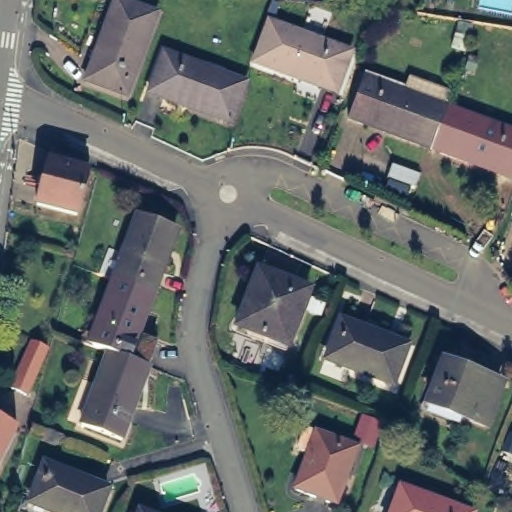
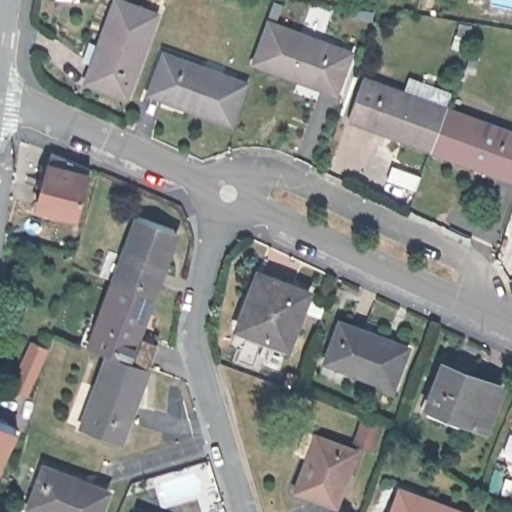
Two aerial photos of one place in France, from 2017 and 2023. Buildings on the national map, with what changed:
unchanged [(53,6),(54,0),(75,0),(74,8),(53,6)]
unchanged [(117,0),(124,0),(156,11),(139,54),(143,55),(128,96),(86,81),(92,66),(101,43),(117,0)]
unchanged [(251,61),(265,23),(307,38),(308,35),(349,49),(334,91),(319,85),(296,77),(251,61)]
unchanged [(466,44),(463,57),(449,53),(454,41),(466,44)]
unchanged [(150,93),(166,51),(206,66),(204,70),(246,85),(233,123),(188,107),(165,98),(150,93)]
unchanged [(350,116),(366,75),(406,89),(404,93),(447,108),(432,146),(388,130),(364,122),(350,116)]
unchanged [(432,146),(447,108),(489,123),(489,120),(512,128),(512,175),(500,170),(477,162),(432,146)]
unchanged [(47,154),(87,164),(75,206),(36,196),(47,154)]
unchanged [(148,293),(114,281),(123,259),(118,257),(135,212),(173,227),(156,270),(161,272),(153,294),(148,293)]
unchanged [(256,269),(309,288),(289,344),(237,325),(256,269)]
unchanged [(98,325),(94,323),(110,280),(114,281),(148,293),(133,337),(136,339),(128,360),(106,353),(90,345),(98,325)]
unchanged [(337,313),(363,323),(361,326),(404,342),(389,380),(347,365),(349,361),(324,351),(337,313)]
unchanged [(35,339),(50,346),(35,380),(20,374),(35,339)]
unchanged [(128,360),(143,366),(133,397),(136,399),(121,440),(80,423),(106,353),(128,360)]
unchanged [(504,387),(489,429),(432,408),(448,366),(504,387)]
unchanged [(0,459),(0,421),(15,429),(0,459)]
unchanged [(307,454),(304,448),(309,434),(314,431),(326,435),(364,448),(356,472),(351,470),(340,502),(303,490),(315,456),(307,454)]
unchanged [(68,473),(66,477),(106,494),(99,512),(52,512),(52,510),(29,500),(44,464),(68,473)]
unchanged [(434,502),(435,498),(474,512),(394,512),(402,490),(434,502)]
unchanged [(147,512),(140,512),(141,509),(147,512)]

